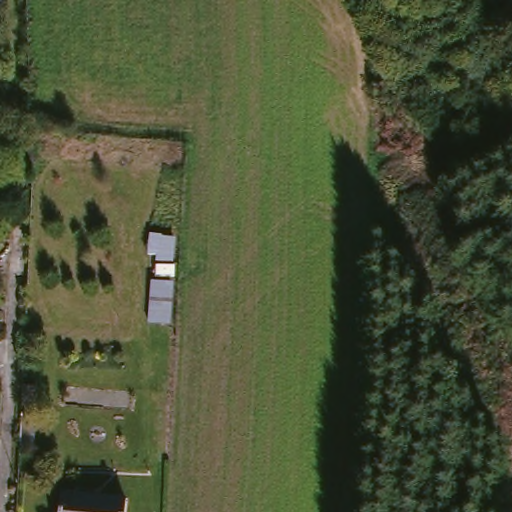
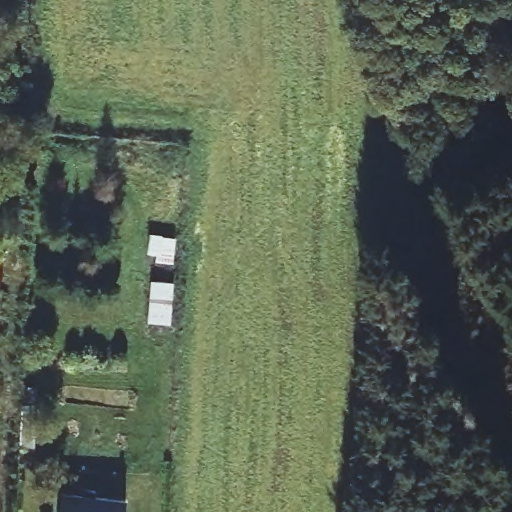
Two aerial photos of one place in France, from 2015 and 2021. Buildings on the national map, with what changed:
unchanged [(119,512),(53,512),(54,493),(119,501),(119,512)]

